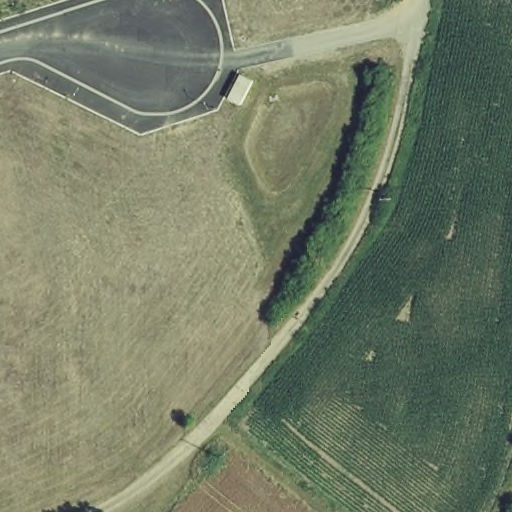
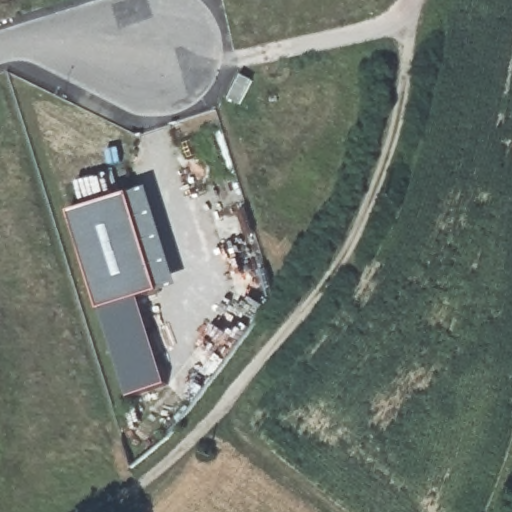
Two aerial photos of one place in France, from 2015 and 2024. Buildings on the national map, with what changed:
new [(149,189),(179,288),(161,293),(130,195),(149,189)]
new [(130,195),(161,293),(141,300),(102,312),(101,312),(69,214),(130,195)]
new [(141,300),(168,386),(128,398),(102,312),(141,300)]

